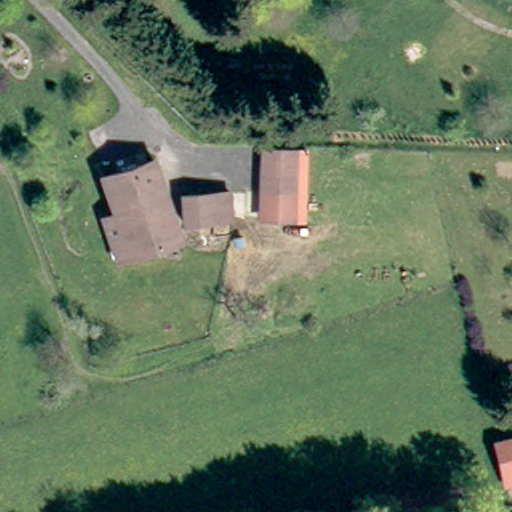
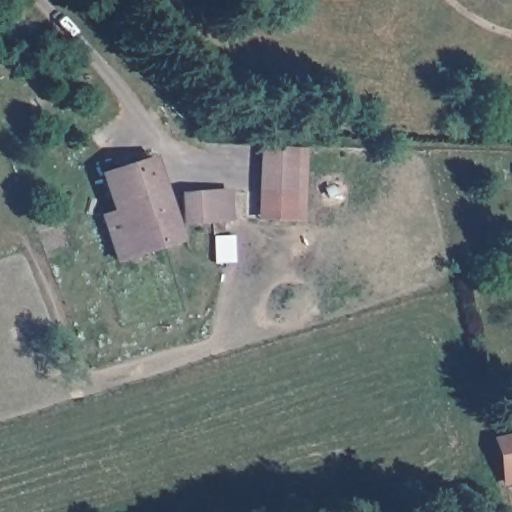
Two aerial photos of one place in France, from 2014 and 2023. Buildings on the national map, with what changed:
unchanged [(252,213),(253,200),(257,141),(289,142),(286,202),(285,215),(252,213)]
unchanged [(103,172),(153,155),(181,237),(120,255),(103,212),(115,207),(103,172)]
unchanged [(225,188),(230,214),(193,221),(189,194),(225,188)]
unchanged [(502,483),(490,437),(512,433),(512,481),(502,483)]

